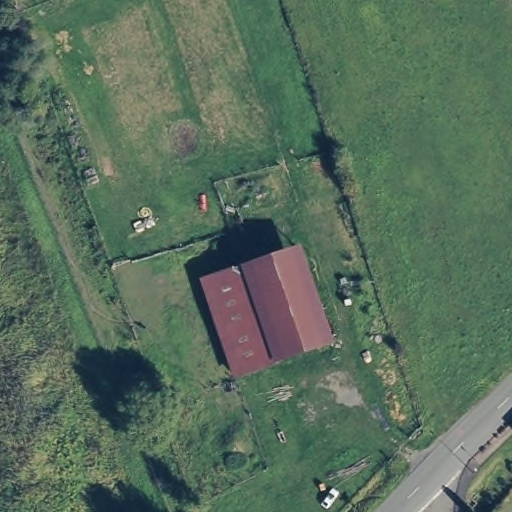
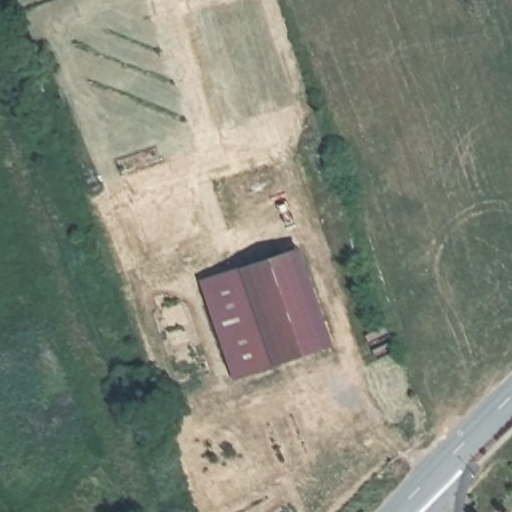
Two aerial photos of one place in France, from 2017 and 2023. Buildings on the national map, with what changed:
unchanged [(187,270),(228,256),(235,273),(290,254),(322,349),(226,382),(193,287),(187,270)]

